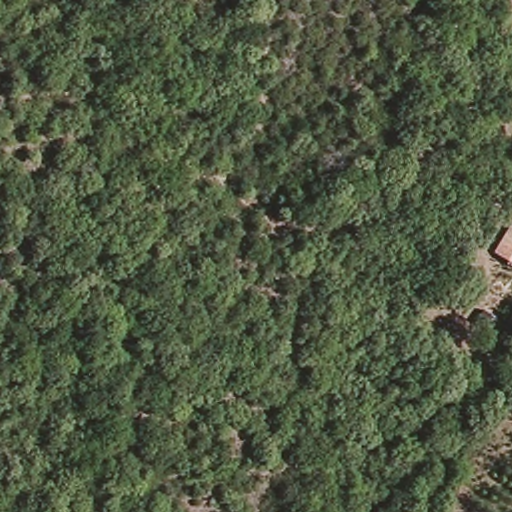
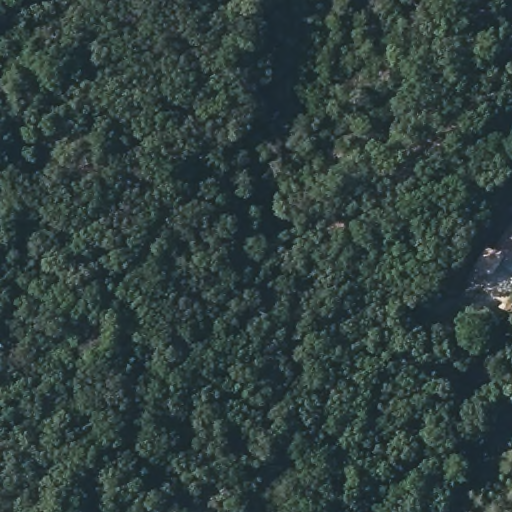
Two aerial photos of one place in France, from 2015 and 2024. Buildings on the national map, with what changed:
unchanged [(507,222),(512,226),(512,269),(492,257),(507,222)]

